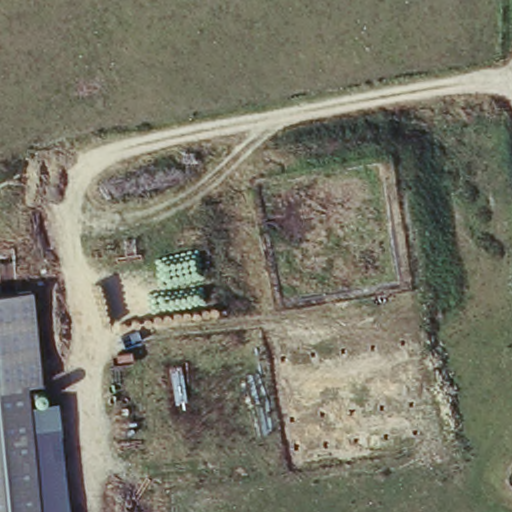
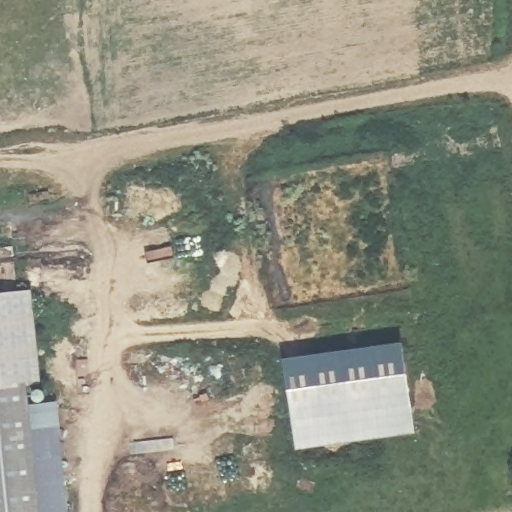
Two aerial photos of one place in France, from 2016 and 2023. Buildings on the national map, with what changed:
unchanged [(0,291),(32,286),(45,382),(26,382),(0,386),(0,291)]
new [(297,449),(284,359),(401,340),(401,341),(415,432),(297,449)]
unchanged [(30,406),(45,512),(0,512),(0,386),(26,382),(30,406)]
unchanged [(55,403),(70,512),(45,512),(30,406),(55,403)]

